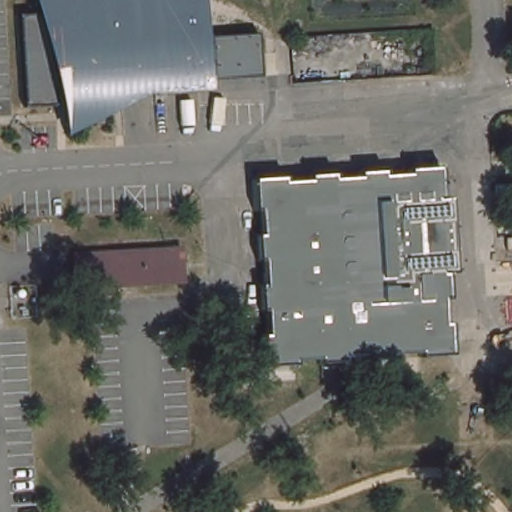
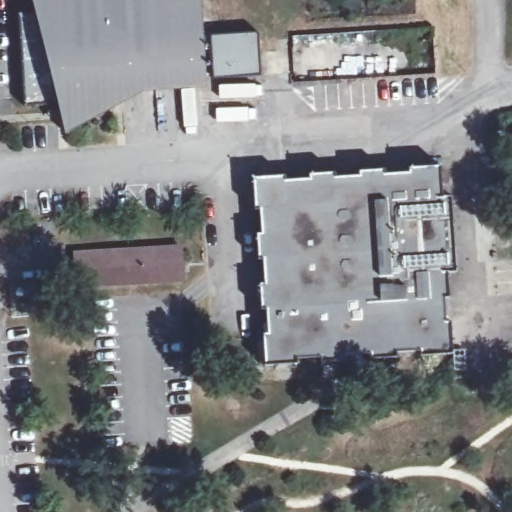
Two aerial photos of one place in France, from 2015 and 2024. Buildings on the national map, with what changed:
unchanged [(57,100),(25,102),(18,9),(35,8),(33,0),(201,0),(202,31),(259,28),(261,71),(205,75),(206,85),(143,88),(65,131),(57,100)]
unchanged [(264,255),(258,255),(257,230),(262,230),(260,205),(255,205),(253,173),(285,171),(285,176),(310,174),(309,170),(335,168),(335,173),(359,172),(358,166),(384,165),(385,170),(408,168),(408,164),(441,161),(443,195),(438,196),(440,218),(445,217),(446,244),(441,245),(443,269),(448,268),(450,293),(444,294),(446,318),(451,318),(453,349),(420,351),(419,346),(397,347),(397,352),(371,354),(370,349),(347,351),(347,355),(320,357),(320,353),(297,354),(297,359),(265,360),(263,328),(268,328),(267,305),(261,305),(260,279),(265,279),(264,255)]
unchanged [(181,281),(77,287),(76,255),(180,248),(181,281)]

